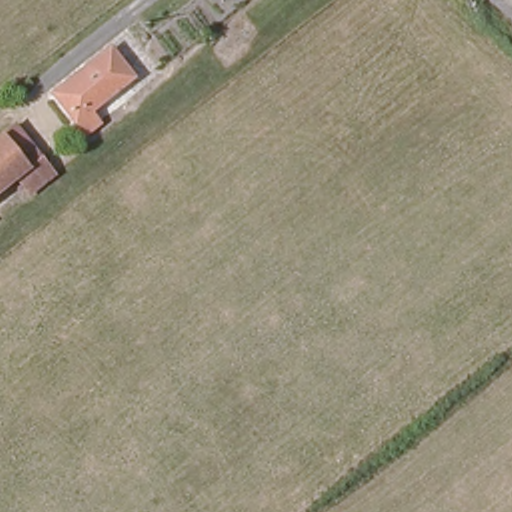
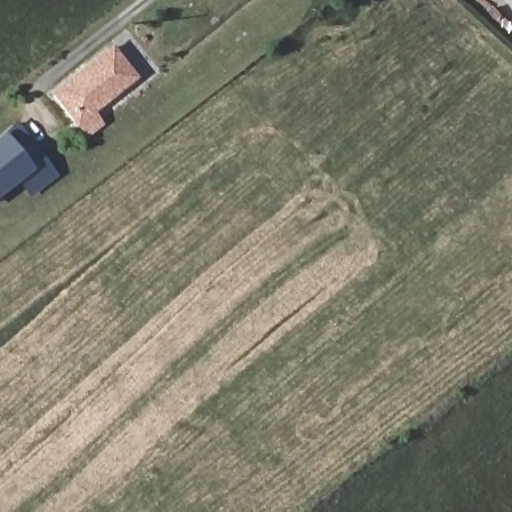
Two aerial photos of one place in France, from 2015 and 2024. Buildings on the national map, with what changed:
unchanged [(88,112),(100,129),(83,140),(47,94),(108,44),(133,75),(88,112)]
unchanged [(28,203),(8,178),(0,187),(0,133),(17,120),(56,175),(28,203)]

